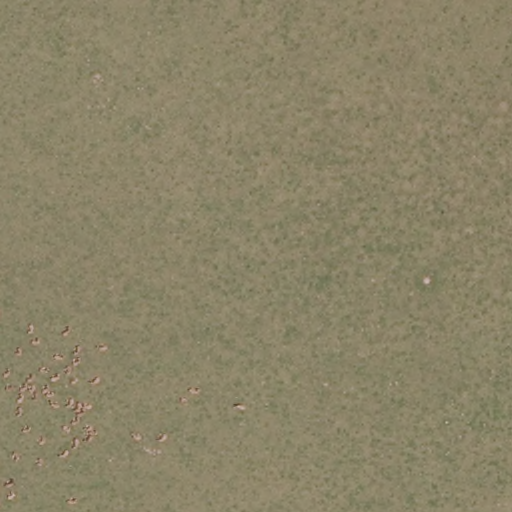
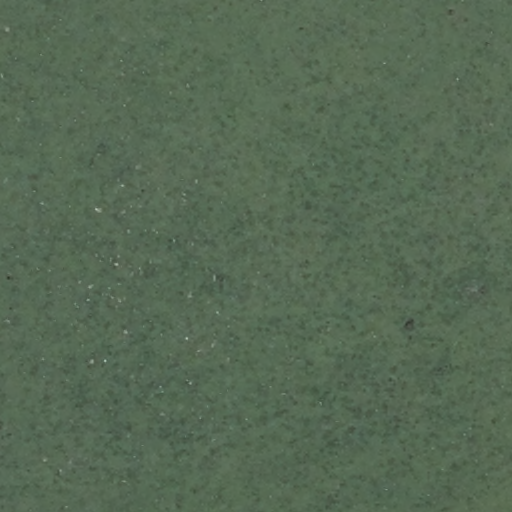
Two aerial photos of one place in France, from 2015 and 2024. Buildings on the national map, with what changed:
[]

